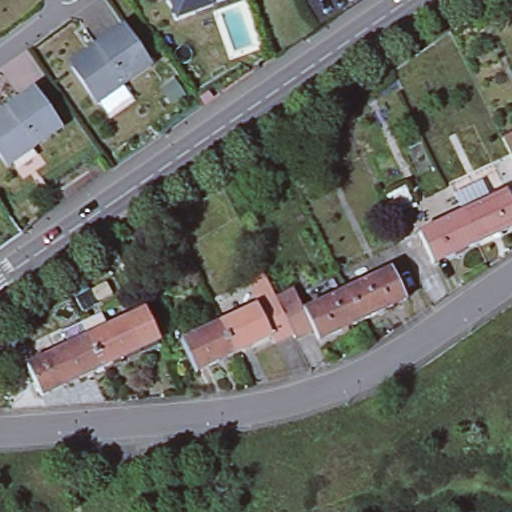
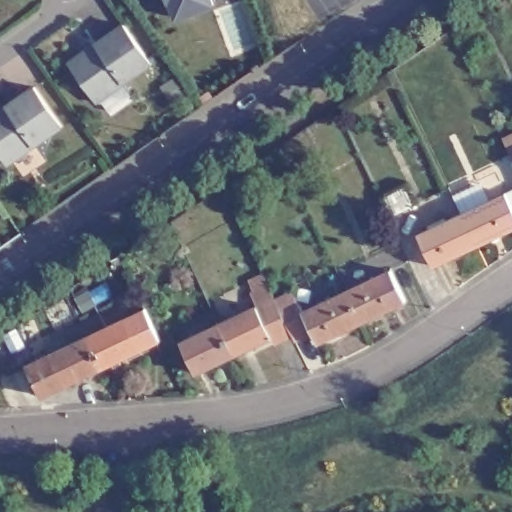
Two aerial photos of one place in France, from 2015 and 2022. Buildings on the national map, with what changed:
unchanged [(201,8),(165,20),(160,3),(158,4),(156,0),(215,0),(216,4),(201,8)]
unchanged [(70,58),(121,22),(150,61),(95,101),(70,66),(70,58)]
unchanged [(33,90),(59,128),(5,166),(0,158),(0,112),(33,90)]
unchanged [(512,164),(512,171),(509,166),(512,164)]
unchanged [(458,216),(504,193),(512,189),(512,227),(472,246),(458,216)]
unchanged [(458,216),(472,246),(430,265),(416,235),(458,216)]
unchanged [(399,265),(414,295),(371,316),(356,285),(399,265)]
unchanged [(287,298),(304,290),(312,306),(356,285),(371,316),(326,337),(321,325),(304,334),(302,330),(289,336),(273,301),(286,295),(287,298)]
unchanged [(266,301),(281,331),(244,350),(229,320),(266,301)]
unchanged [(143,310),(158,340),(141,348),(101,367),(88,338),(126,319),(143,310)]
unchanged [(229,320),(244,350),(206,369),(191,339),(229,320)]
unchanged [(27,369),(51,357),(88,338),(101,367),(65,384),(40,396),(27,369)]

